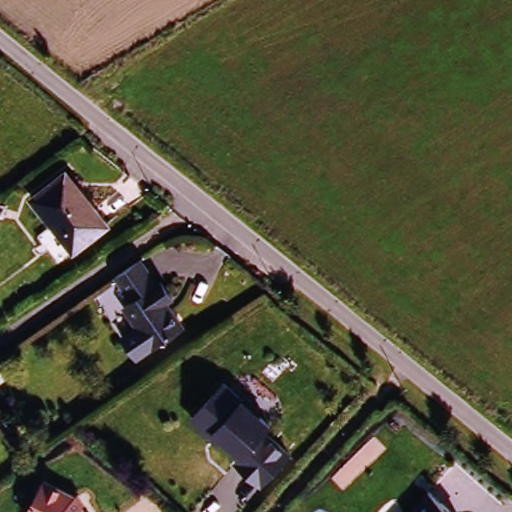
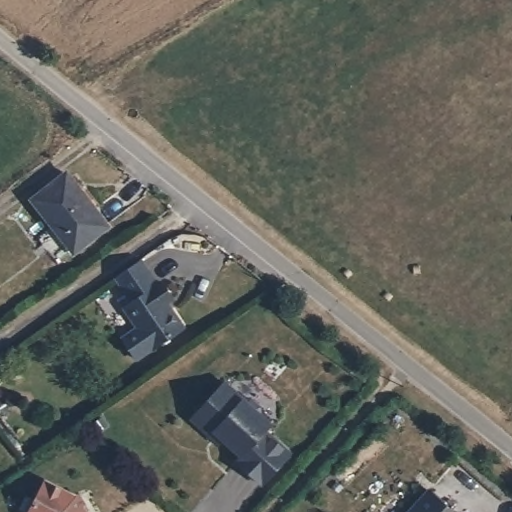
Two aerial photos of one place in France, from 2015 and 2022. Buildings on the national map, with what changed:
unchanged [(73,251),(32,198),(65,172),(107,224),(73,251)]
unchanged [(167,307),(185,332),(153,353),(123,310),(132,303),(117,281),(142,264),(158,288),(162,286),(173,302),(167,307)]
unchanged [(0,393),(10,386),(18,397),(0,410),(0,393)]
unchanged [(203,440),(193,430),(193,422),(222,390),(241,407),(248,407),(257,415),(257,422),(269,432),(263,438),(288,462),(260,493),(233,469),(238,463),(220,447),(217,452),(203,440)]
unchanged [(83,512),(31,512),(44,485),(75,501),(83,512)]
unchanged [(448,512),(410,512),(427,493),(448,512)]

